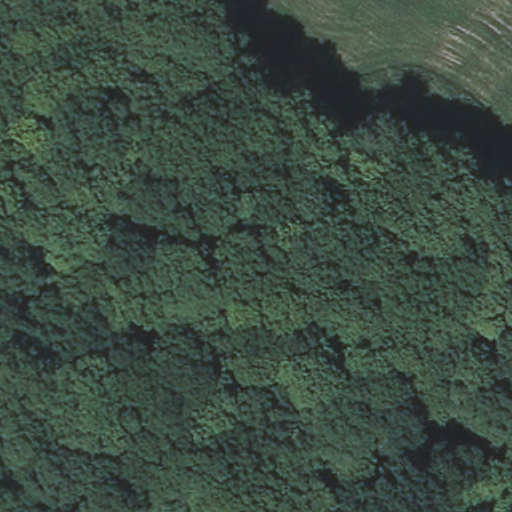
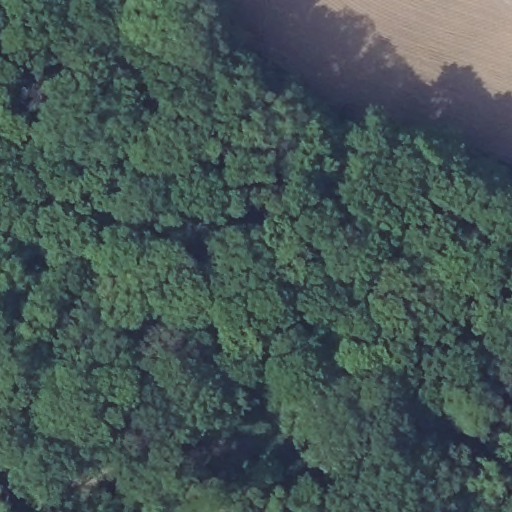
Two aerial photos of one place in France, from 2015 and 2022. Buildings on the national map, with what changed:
unchanged [(447,139),(437,124),(426,108),(458,92),(473,129),(464,132),(447,139)]

